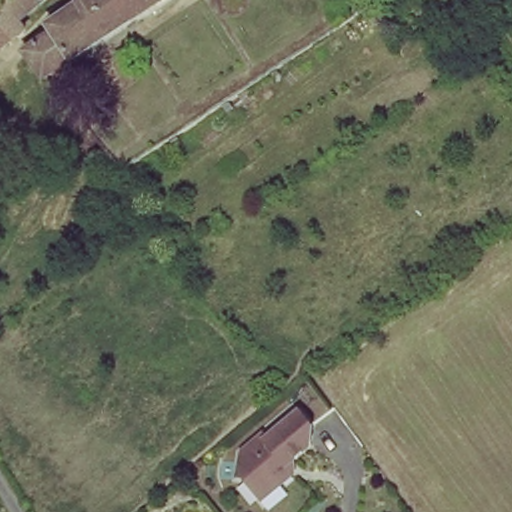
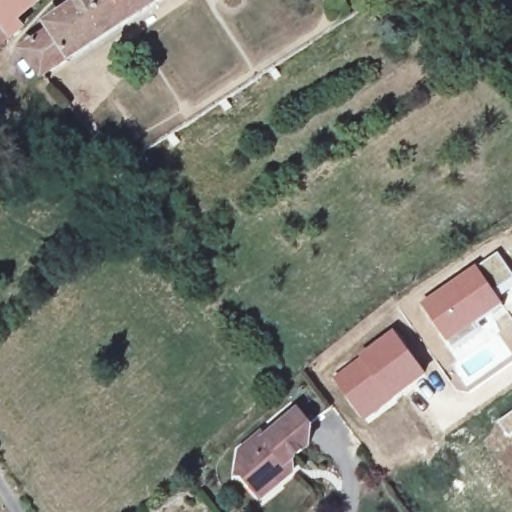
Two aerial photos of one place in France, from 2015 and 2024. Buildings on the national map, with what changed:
unchanged [(46,34),(42,28),(61,16),(58,11),(74,0),(159,0),(46,75),(26,48),(46,34)]
new [(419,302),(477,264),(498,251),(512,272),(512,289),(500,297),(504,304),(448,343),(419,302)]
new [(393,328),(426,372),(364,420),(331,376),(393,328)]
unchanged [(254,486),(242,473),(230,474),(229,454),(249,434),(254,439),(293,404),(306,418),(306,439),(284,459),(291,466),(278,478),(260,494),(254,486)]
new [(512,410),(512,439),(498,420),(512,410)]

